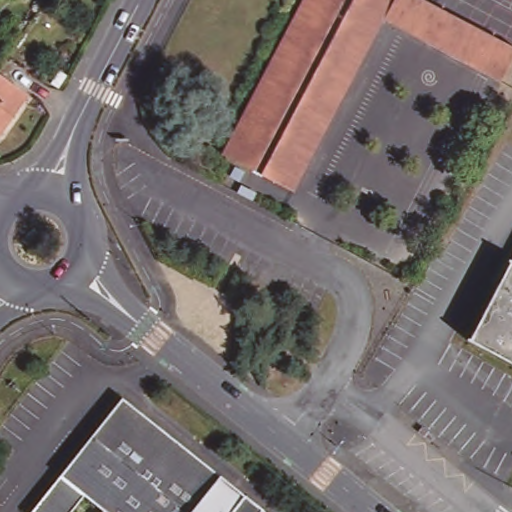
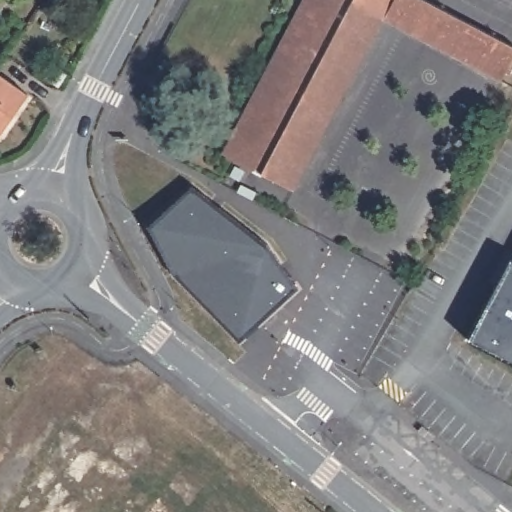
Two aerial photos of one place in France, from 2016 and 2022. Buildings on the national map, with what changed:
unchanged [(512,43),(512,62),(502,80),(386,18),(297,190),(223,154),(305,0),(430,0),(512,43)]
unchanged [(1,137),(0,137),(0,75),(29,96),(1,137)]
new [(239,340),(173,272),(152,225),(192,187),(264,245),(296,287),(239,340)]
unchanged [(469,339),(512,261),(512,362),(469,339)]
demolished [(32,512),(127,397),(264,512),(102,512),(104,508),(88,495),(74,512),(32,512)]

